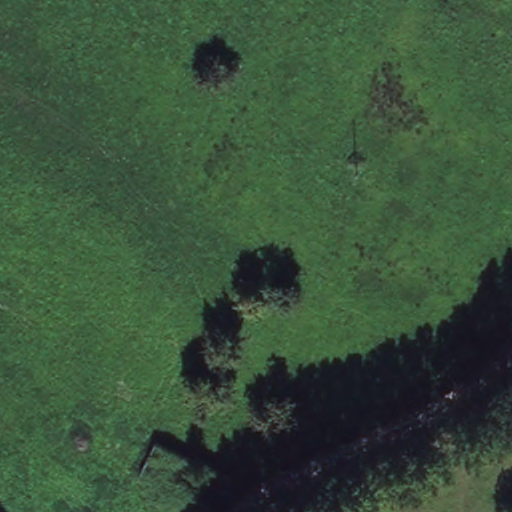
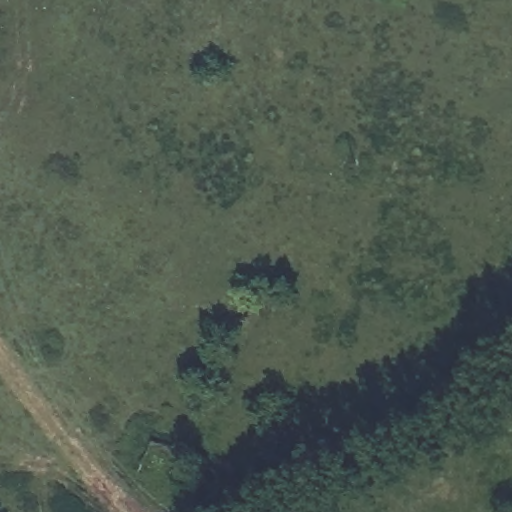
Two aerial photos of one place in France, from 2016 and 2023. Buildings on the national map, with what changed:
unchanged [(231,478),(217,509),(190,497),(182,501),(162,491),(161,485),(137,475),(152,442),(231,478)]

